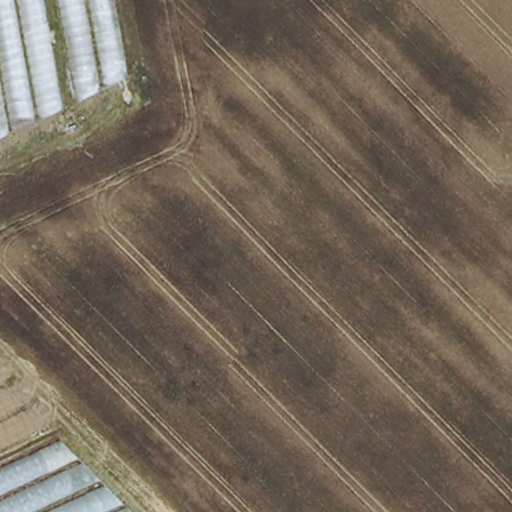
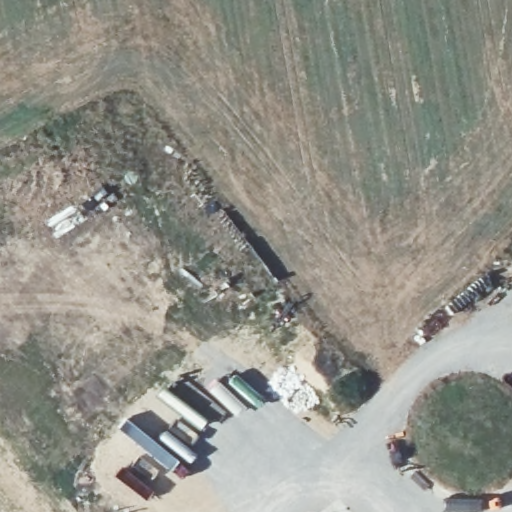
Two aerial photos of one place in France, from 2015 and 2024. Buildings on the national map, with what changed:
demolished [(0,133),(0,0),(101,0),(115,78),(0,133)]
demolished [(51,441),(120,512),(0,512),(0,465),(51,441)]

